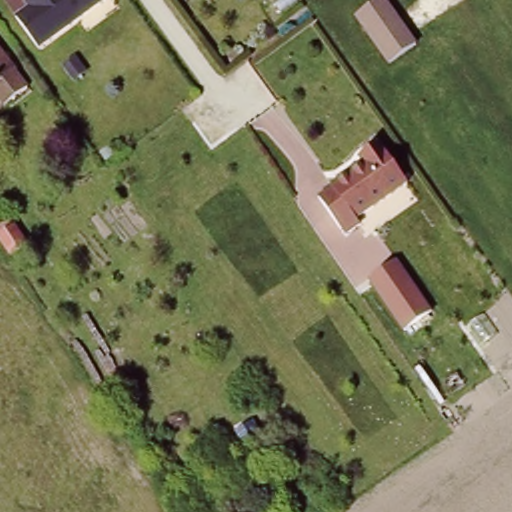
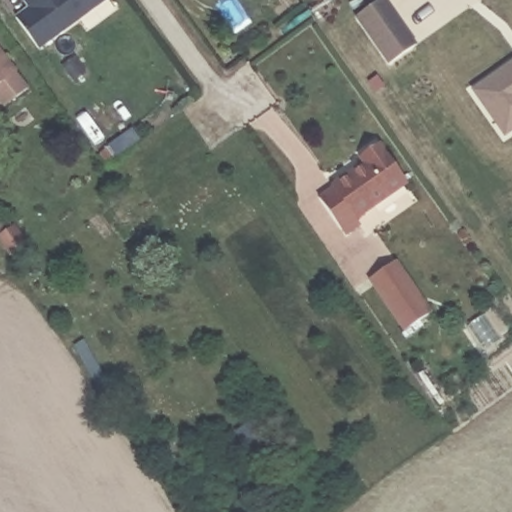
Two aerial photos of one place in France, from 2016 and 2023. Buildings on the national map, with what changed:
unchanged [(32,9),(28,3),(33,0),(112,0),(47,48),(42,51),(20,19),(22,16),(32,9)]
unchanged [(377,0),(389,0),(419,43),(389,64),(354,15),(377,0)]
unchanged [(20,76),(17,78),(28,95),(5,111),(0,106),(0,49),(20,76)]
unchanged [(70,62),(80,75),(70,84),(60,70),(70,62)]
new [(472,90),(512,62),(512,133),(505,137),(472,90)]
unchanged [(410,180),(357,215),(362,221),(345,232),(317,194),(362,163),(357,155),(382,136),(410,180)]
new [(8,219),(13,226),(15,225),(27,244),(12,255),(0,238),(0,235),(0,234),(0,224),(8,219)]
unchanged [(432,311),(403,329),(369,277),(398,256),(432,311)]

